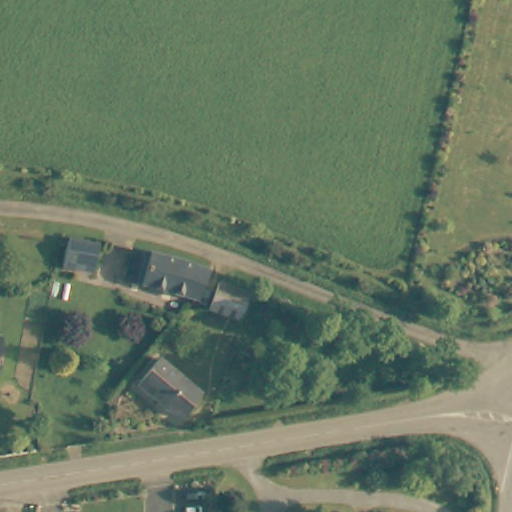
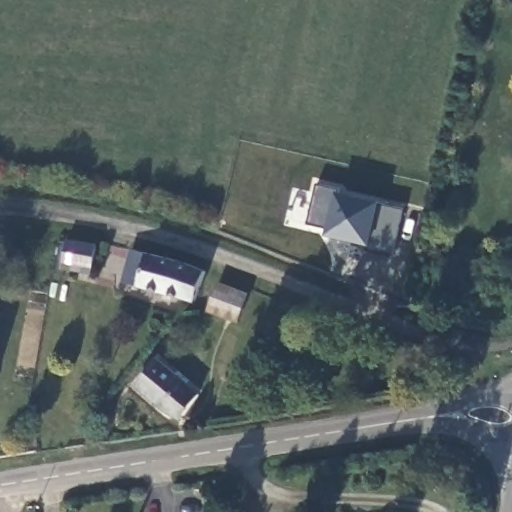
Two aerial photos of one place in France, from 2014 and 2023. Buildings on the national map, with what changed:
new [(317,184),(340,189),(339,192),(404,207),(395,257),(368,250),(369,244),(330,234),(331,228),(309,224),(317,184)]
unchanged [(108,278),(76,271),(81,244),(114,250),(108,278)]
unchanged [(201,300),(126,281),(134,250),(199,266),(208,271),(201,300)]
unchanged [(227,323),(235,295),(265,300),(257,331),(227,323)]
unchanged [(0,373),(0,341),(5,341),(0,373)]
unchanged [(184,416),(144,383),(163,360),(205,392),(184,416)]

